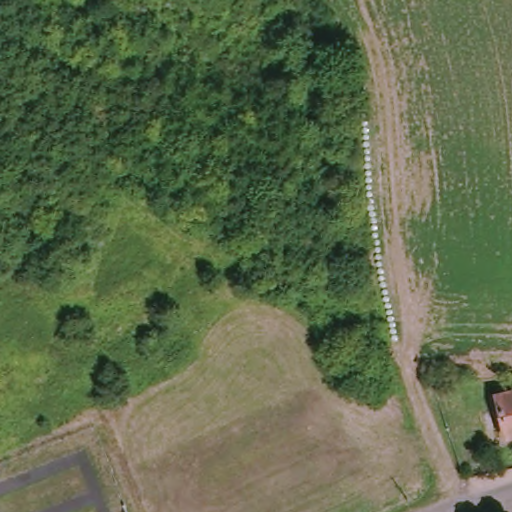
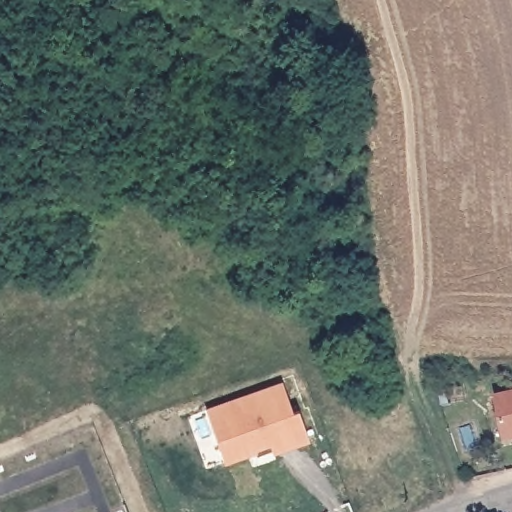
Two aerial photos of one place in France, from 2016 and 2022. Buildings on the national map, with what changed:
new [(207,409),(283,381),(295,411),(300,410),(311,439),(273,452),(270,446),(225,463),(207,409)]
unchanged [(488,446),(477,402),(512,393),(512,440),(488,446)]

